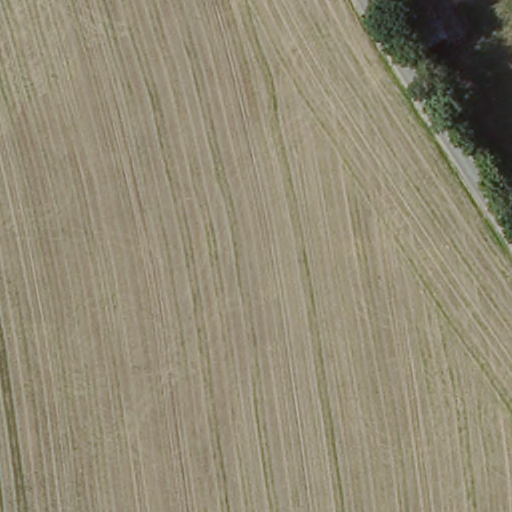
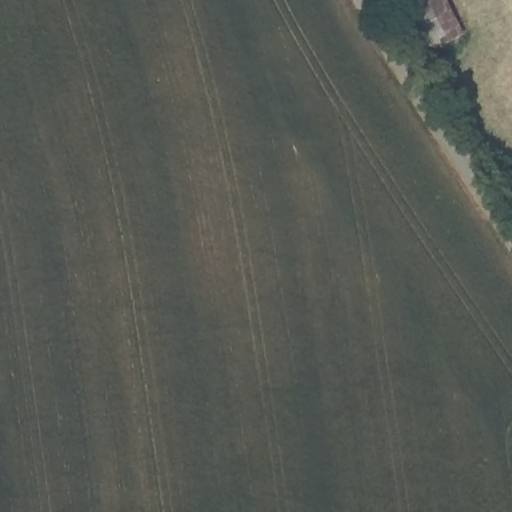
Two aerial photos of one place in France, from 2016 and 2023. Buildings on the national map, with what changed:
unchanged [(465,36),(421,58),(394,10),(413,0),(448,0),(465,36)]

